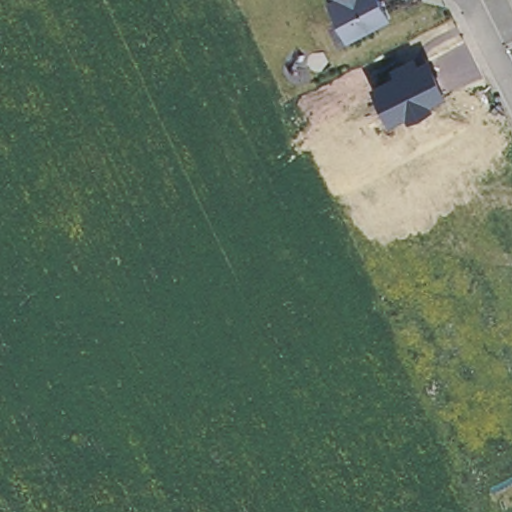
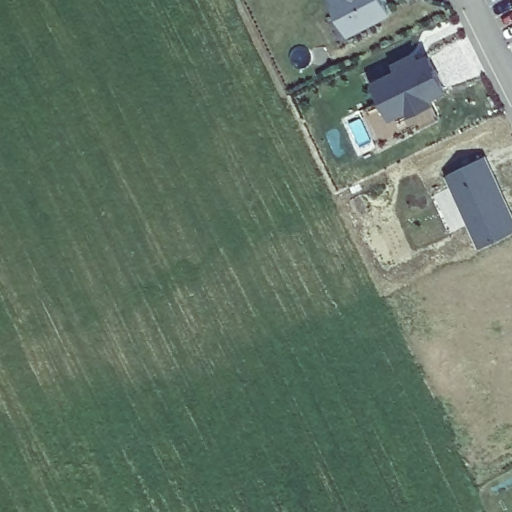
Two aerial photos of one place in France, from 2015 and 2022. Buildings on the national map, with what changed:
unchanged [(348,35),(330,0),(382,0),(390,14),(348,35)]
unchanged [(393,122),(372,83),(428,52),(449,92),(393,122)]
new [(512,213),(512,231),(481,246),(446,175),(485,156),(512,213)]

